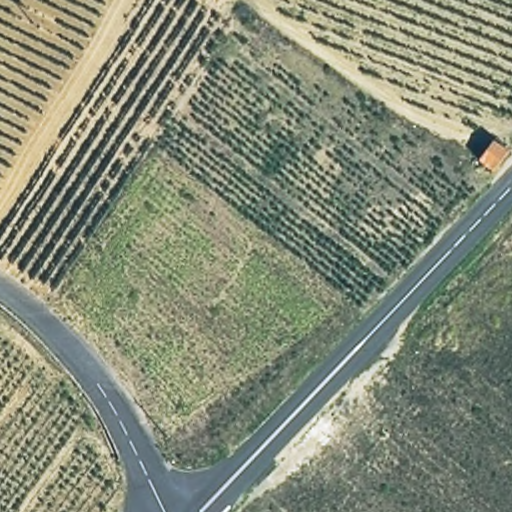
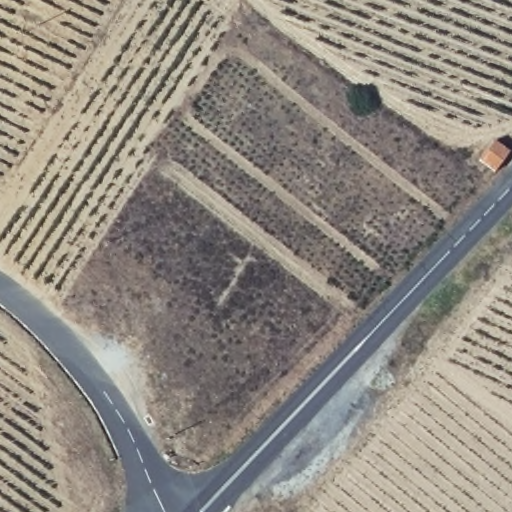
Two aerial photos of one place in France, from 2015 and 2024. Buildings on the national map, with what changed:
unchanged [(509,150),(494,166),(478,155),(494,135),(509,150)]

